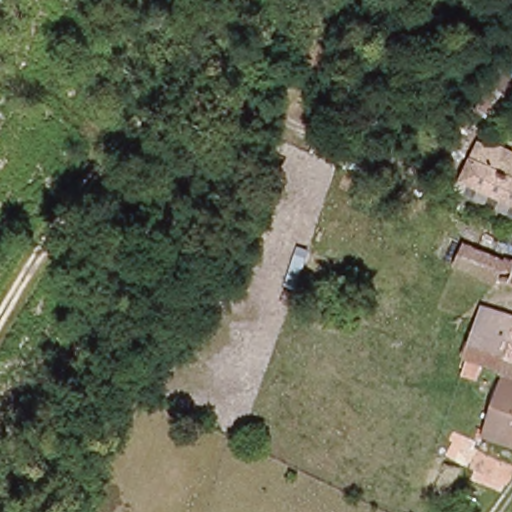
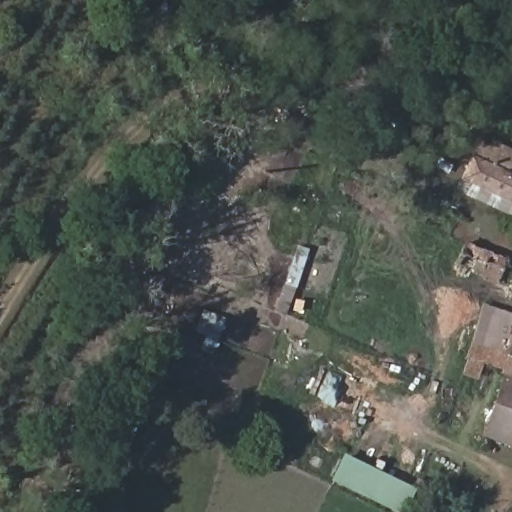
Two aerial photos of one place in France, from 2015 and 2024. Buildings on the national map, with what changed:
unchanged [(448,187),(475,133),(512,150),(512,217),(448,187)]
unchanged [(449,257),(457,237),(512,261),(512,283),(449,257)]
unchanged [(468,355),(490,306),(512,315),(512,374),(468,355)]
unchanged [(492,438),(512,382),(512,447),(492,438)]
new [(415,488),(405,512),(395,512),(330,481),(345,455),(415,488)]

